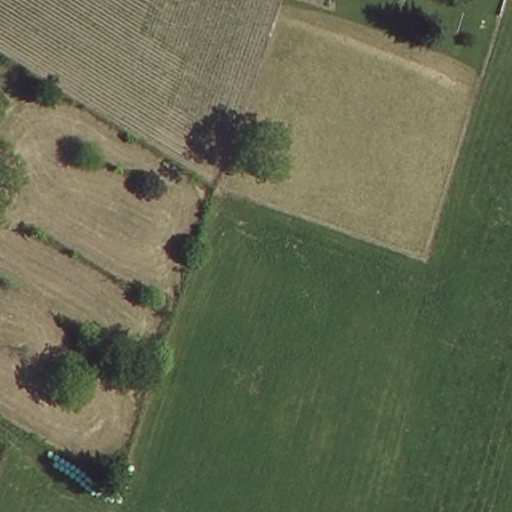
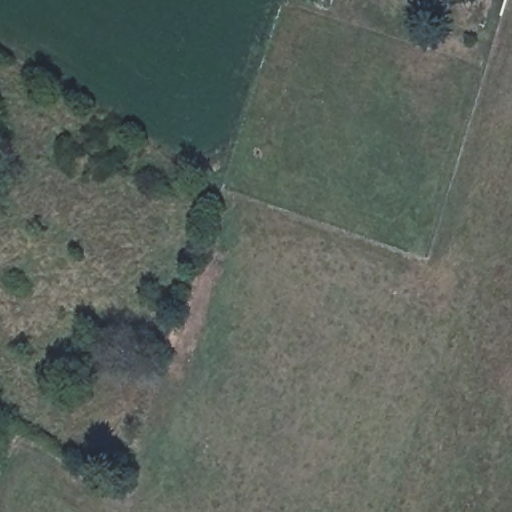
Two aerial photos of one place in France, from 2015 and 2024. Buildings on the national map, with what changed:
[]

